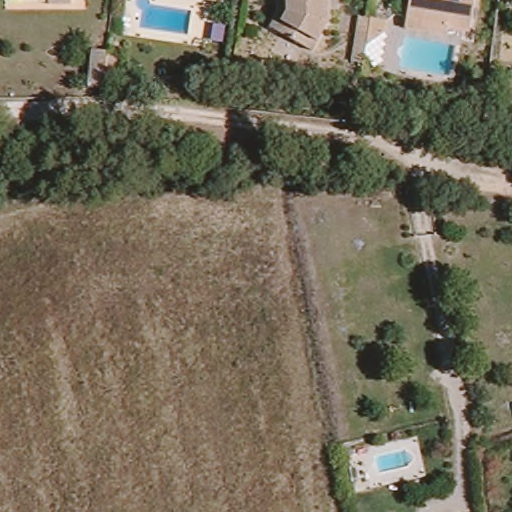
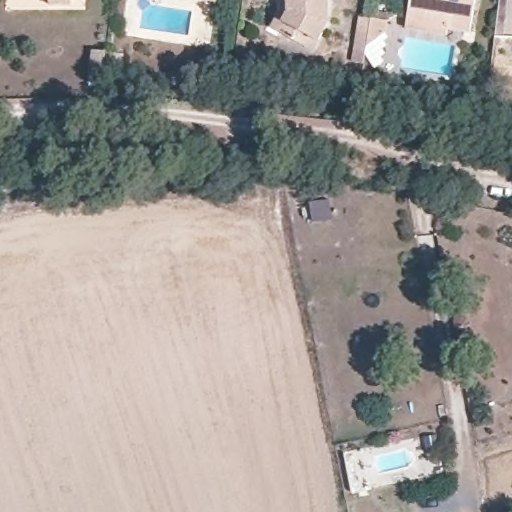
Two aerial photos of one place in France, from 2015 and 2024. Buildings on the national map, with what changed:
unchanged [(76,4),(54,5),(53,0),(76,0),(76,4)]
unchanged [(287,0),(333,0),(334,11),(318,42),(285,24),(278,21),(287,0)]
unchanged [(410,0),(476,0),(471,32),(449,28),(448,33),(406,26),(407,17),(410,0)]
unchanged [(385,34),(369,31),(372,16),(388,19),(385,34)]
unchanged [(105,59),(102,87),(101,94),(89,92),(92,58),(105,59)]

